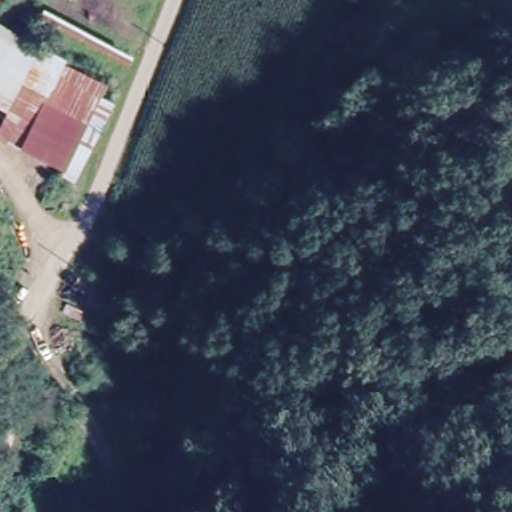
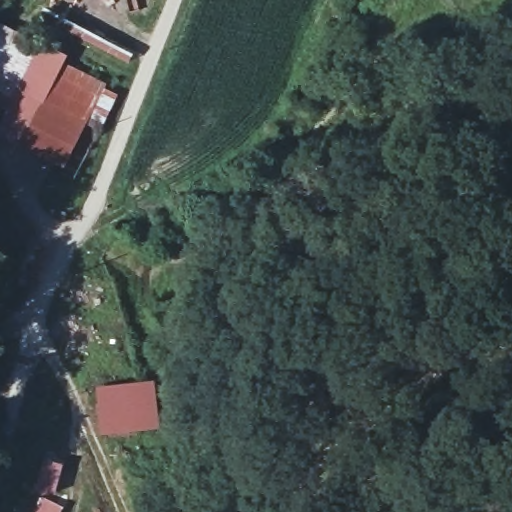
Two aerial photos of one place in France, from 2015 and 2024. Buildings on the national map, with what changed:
unchanged [(107,83),(100,96),(113,104),(77,176),(0,142),(0,124),(4,112),(0,110),(0,23),(63,56),(60,66),(107,83)]
new [(156,379),(159,429),(101,433),(95,386),(156,379)]

